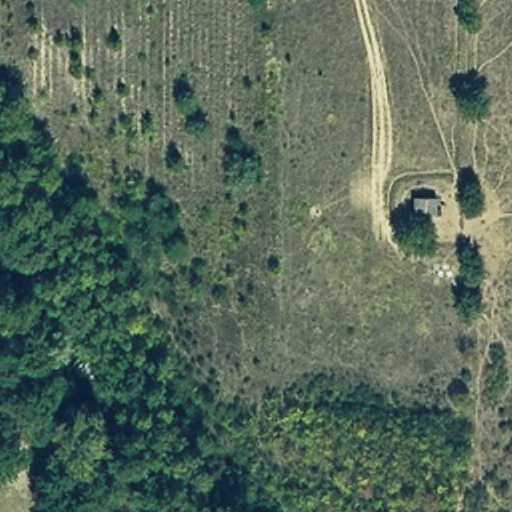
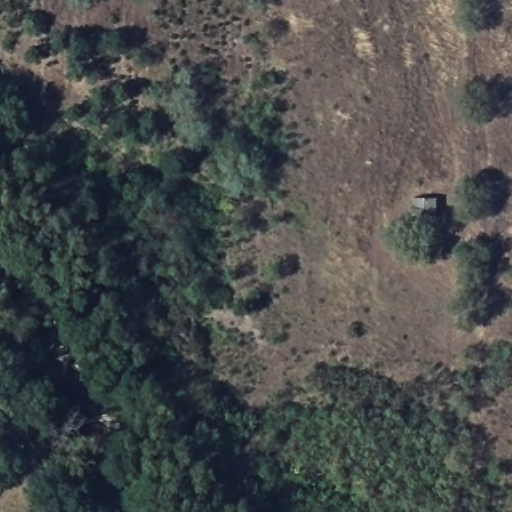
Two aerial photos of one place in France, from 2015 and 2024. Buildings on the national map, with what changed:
unchanged [(414,197),(438,198),(439,214),(414,213),(414,197)]

